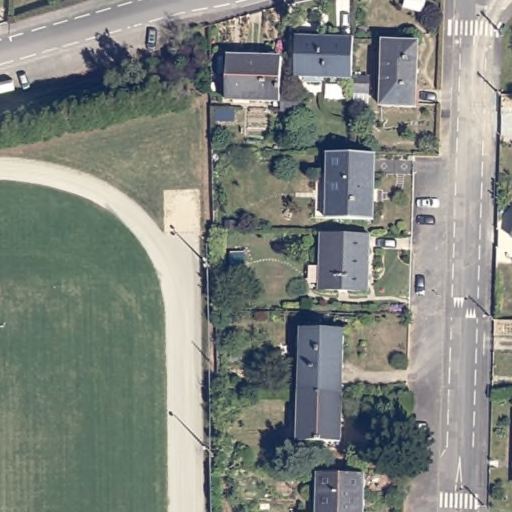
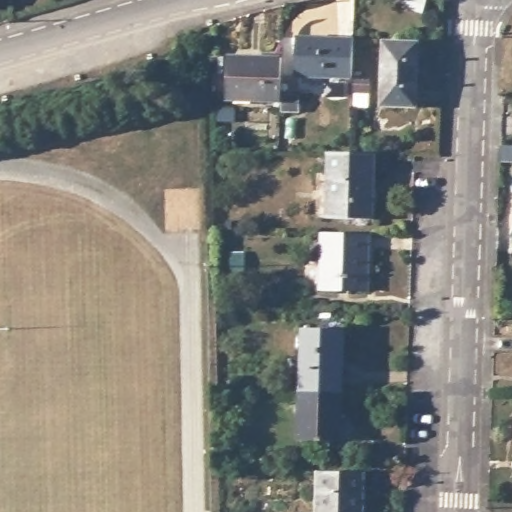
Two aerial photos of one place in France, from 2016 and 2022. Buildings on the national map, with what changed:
unchanged [(295,73),(296,35),(353,36),(351,75),(295,73)]
unchanged [(383,44),(418,45),(416,109),(381,108),(383,44)]
unchanged [(226,103),(227,58),(280,59),(279,105),(226,103)]
unchanged [(367,76),(366,91),(354,90),(354,75),(367,76)]
unchanged [(284,103),(299,103),(298,118),(284,118),(284,103)]
unchanged [(235,113),(235,124),(216,123),(216,113),(235,113)]
unchanged [(349,155),(376,156),(373,222),(326,221),(328,155),(349,155)]
unchanged [(511,234),(512,232),(512,235),(511,234)]
unchanged [(369,236),(368,294),(320,292),(322,235),(369,236)]
unchanged [(302,332),(344,333),(341,396),(299,395),(302,332)]
unchanged [(341,396),(339,444),(298,443),(299,395),(341,396)]
unchanged [(364,476),(363,512),(317,512),(318,474),(364,476)]

